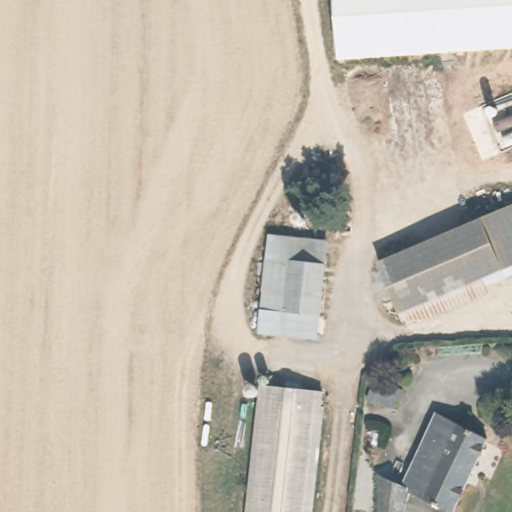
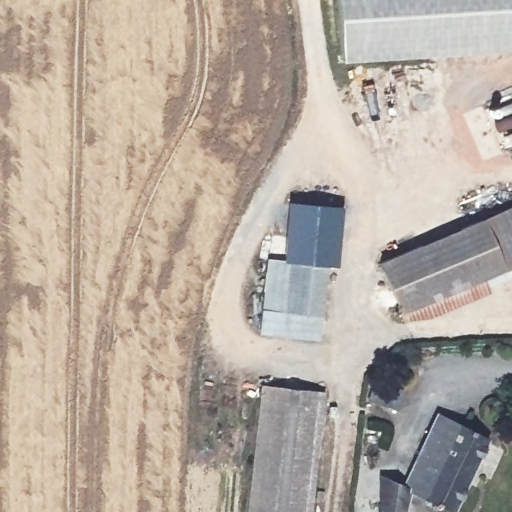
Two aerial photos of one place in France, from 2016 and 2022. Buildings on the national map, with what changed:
unchanged [(341,63),(338,0),(512,0),(512,51),(341,63)]
unchanged [(512,205),(512,266),(506,269),(482,219),(512,205)]
unchanged [(381,265),(482,219),(506,269),(415,310),(404,315),(389,281),(381,265)]
unchanged [(320,340),(257,332),(272,231),(333,240),(320,340)]
unchanged [(368,398),(371,388),(377,391),(381,381),(404,390),(398,410),(368,398)]
unchanged [(258,382),(318,389),(305,512),(244,512),(258,382)]
unchanged [(376,471),(403,481),(439,411),(488,435),(451,510),(410,491),(404,512),(379,512),(376,471)]

